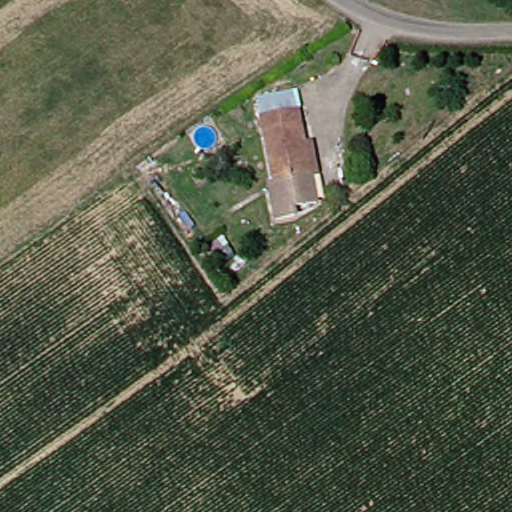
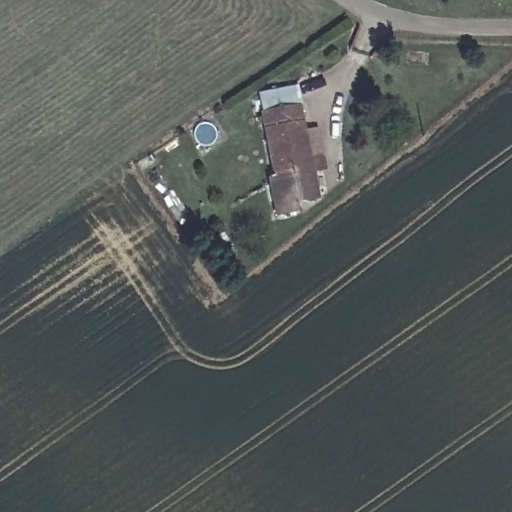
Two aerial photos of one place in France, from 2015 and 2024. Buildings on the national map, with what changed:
unchanged [(259,181),(274,179),(262,111),(298,105),(305,139),(314,137),(321,170),(312,172),(300,174),(304,195),(280,200),(281,205),(264,208),(259,181)]

